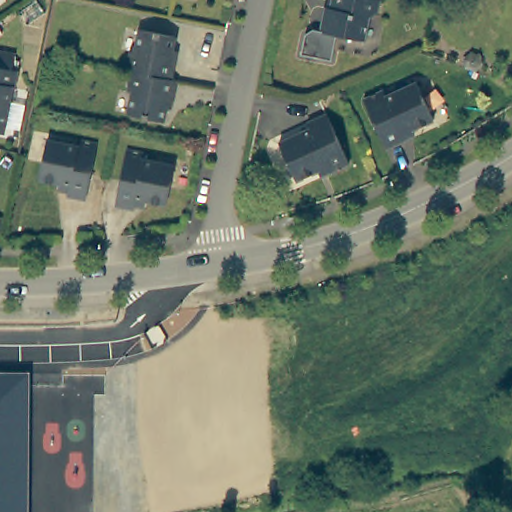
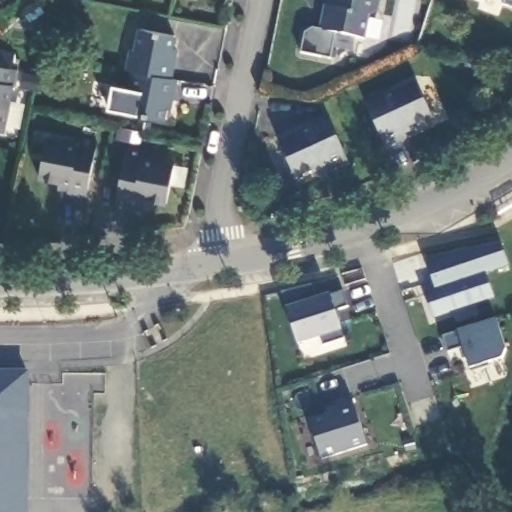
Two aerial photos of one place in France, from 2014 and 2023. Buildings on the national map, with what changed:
unchanged [(375,8),(369,12),(365,34),(337,29),(335,40),(332,54),(301,48),(305,28),(313,23),(321,24),(326,1),(330,2),(330,0),(377,0),(375,8)]
unchanged [(127,70),(131,50),(136,51),(140,29),(174,36),(172,49),(177,50),(171,78),(132,70),(127,70)]
unchanged [(10,59),(7,74),(13,75),(10,92),(8,91),(0,131),(0,58),(10,59)]
unchanged [(171,78),(176,79),(170,107),(166,106),(163,120),(129,113),(133,91),(128,90),(132,70),(171,78)]
unchanged [(433,119),(403,133),(405,139),(386,147),(363,98),(382,89),(385,95),(416,81),(433,119)]
unchanged [(350,164),(330,173),(328,167),(297,182),(279,143),(310,129),(308,123),(327,115),(350,164)]
unchanged [(86,199),(67,195),(69,185),(39,179),(47,139),(77,145),(78,139),(97,142),(86,199)]
unchanged [(145,152),(144,158),(174,164),(166,204),(136,198),(134,208),(115,205),(126,148),(145,152)]
new [(510,266),(486,274),(494,299),(433,318),(425,292),(437,289),(427,263),(500,239),(510,266)]
new [(323,346),(320,338),(298,344),(288,308),(283,294),(312,287),(317,298),(331,294),(342,292),(347,307),(336,312),(343,331),(345,339),(323,346)]
new [(507,357),(472,369),(464,346),(448,352),(443,337),(458,331),(495,319),(507,357)]
unchanged [(30,371),(29,512),(0,512),(0,371),(30,371)]
new [(367,446),(323,460),(311,420),(328,415),(327,410),(337,407),(336,403),(352,397),(367,446)]

